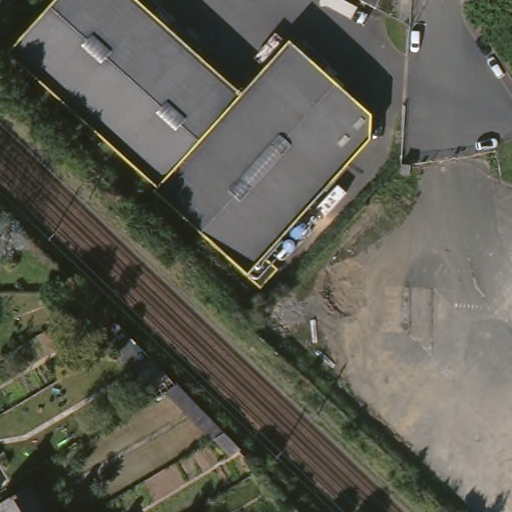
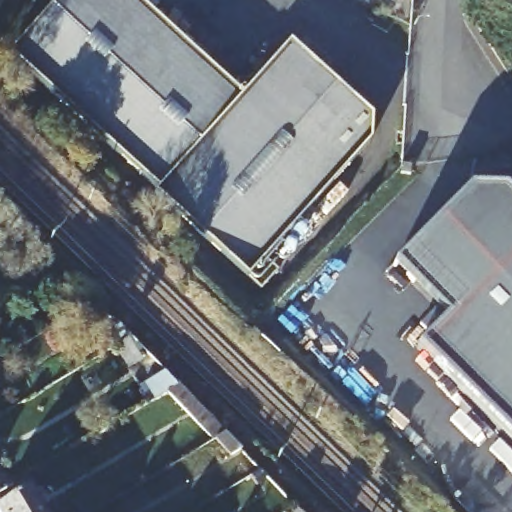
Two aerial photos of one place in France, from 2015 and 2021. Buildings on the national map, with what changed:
unchanged [(383,135),(255,273),(163,190),(168,184),(16,49),(60,0),(149,0),(249,92),(295,39),(381,112),(383,135)]
unchanged [(380,0),(388,0),(386,3),(380,0)]
unchanged [(400,166),(400,164),(413,164),(412,175),(399,174),(400,166)]
new [(419,349),(447,320),(395,268),(467,193),(503,195),(512,204),(512,441),(419,349)]
unchanged [(127,369),(113,348),(101,355),(95,344),(107,337),(103,331),(116,323),(131,337),(128,339),(141,361),(127,369)]
unchanged [(240,450),(229,456),(214,439),(212,441),(166,391),(180,384),(226,433),(220,436),(226,433),(240,450)]
unchanged [(8,487),(0,492),(0,476),(2,474),(8,487)]
unchanged [(34,483),(52,512),(6,512),(1,504),(34,483)]

